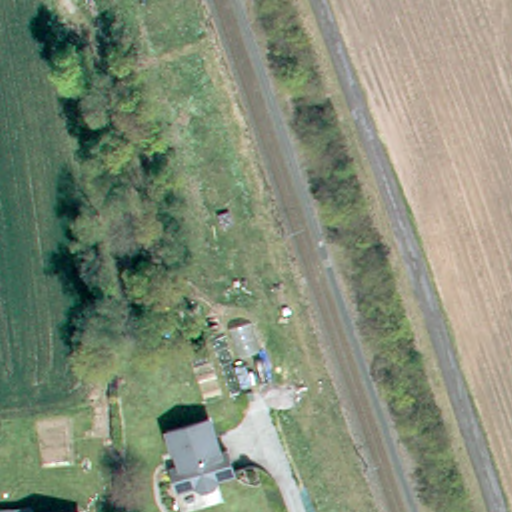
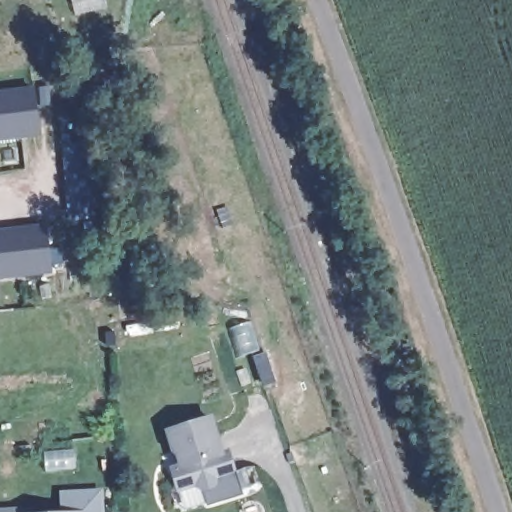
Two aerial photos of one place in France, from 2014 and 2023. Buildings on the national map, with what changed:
new [(34,86),(41,136),(0,141),(0,90),(34,86)]
new [(46,223),(52,273),(0,279),(0,228),(46,223)]
new [(265,355),(273,381),(263,385),(255,358),(265,355)]
unchanged [(223,454),(232,453),(238,479),(175,494),(167,468),(175,466),(161,430),(210,417),(223,454)]
new [(60,512),(59,492),(102,490),(103,512),(83,512),(60,512)]
unchanged [(25,510),(24,512),(0,512),(0,510),(25,510)]

